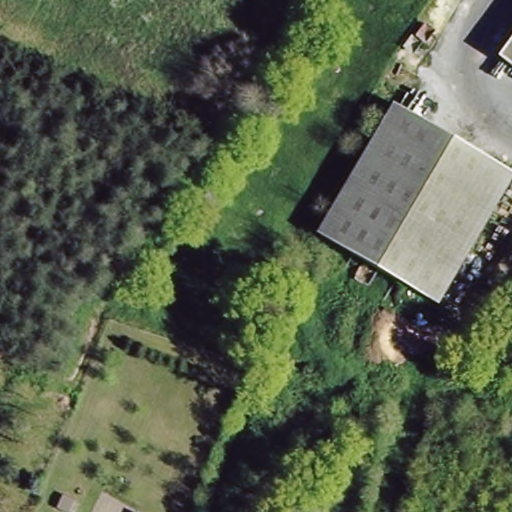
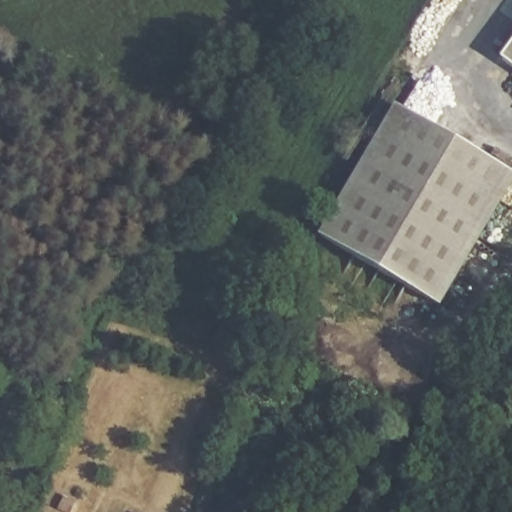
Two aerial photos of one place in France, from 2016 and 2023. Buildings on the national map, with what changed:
unchanged [(512,44),(512,71),(499,63),(512,44)]
unchanged [(322,244),(388,109),(492,159),(512,169),(512,170),(445,303),(415,289),(322,244)]

